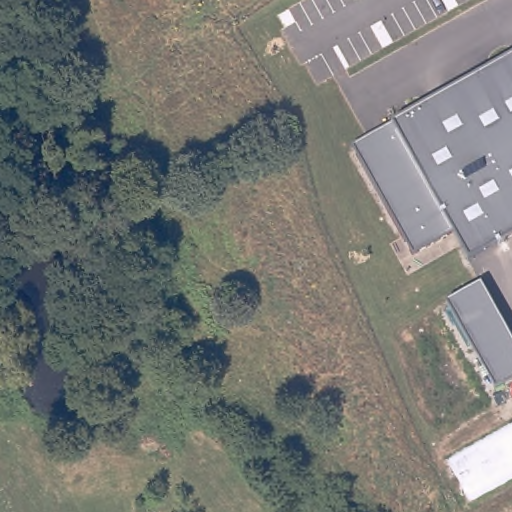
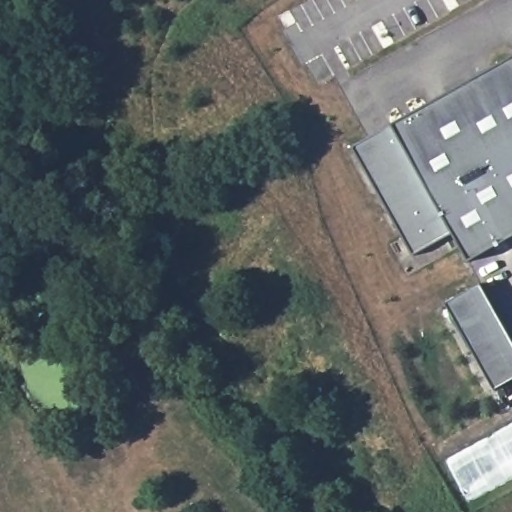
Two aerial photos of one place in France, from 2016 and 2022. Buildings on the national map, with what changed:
unchanged [(453,237),(413,255),(352,146),(392,124),(512,56),(512,238),(467,262),(453,237)]
unchanged [(512,380),(495,389),(446,303),(481,283),(512,337),(512,380)]
unchanged [(4,325),(4,337),(0,337),(0,325),(4,325)]

